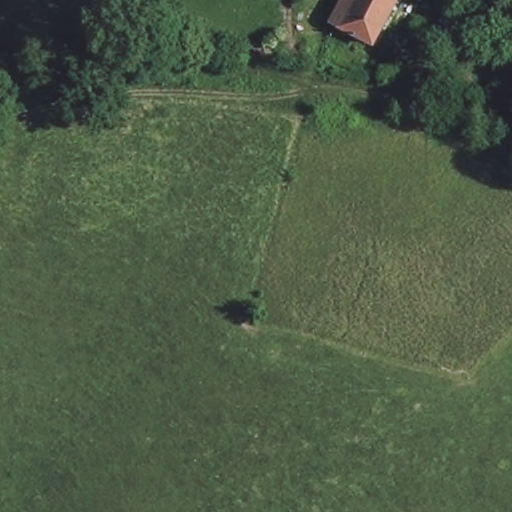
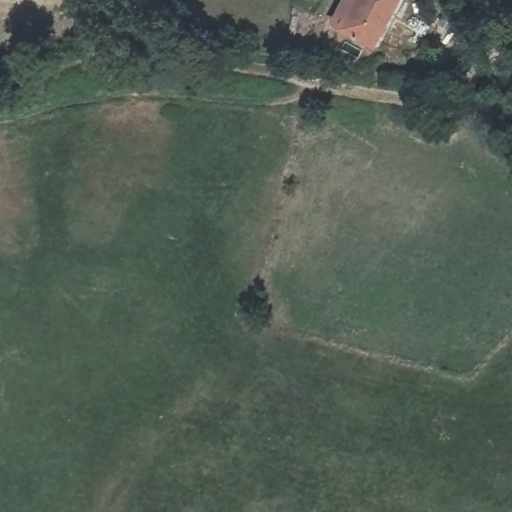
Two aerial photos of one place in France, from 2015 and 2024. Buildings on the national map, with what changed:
unchanged [(354,0),(399,0),(393,15),(370,50),(339,33),(354,0)]

